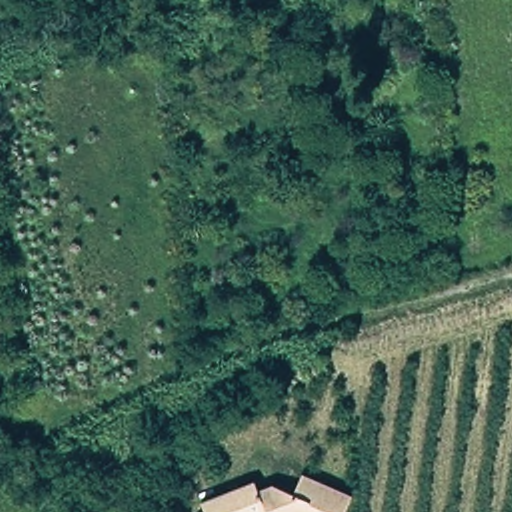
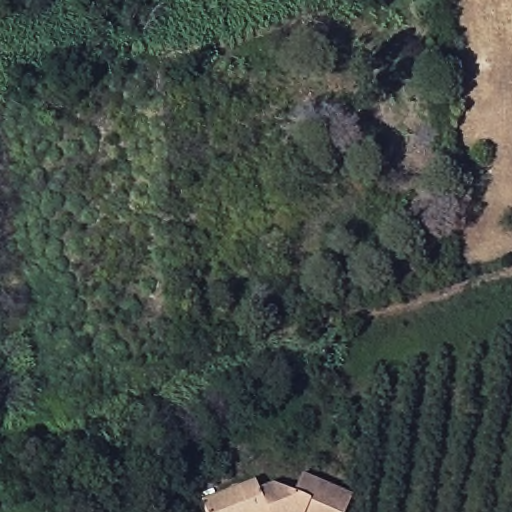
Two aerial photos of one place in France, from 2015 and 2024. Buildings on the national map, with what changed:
unchanged [(254,492),(277,485),(292,492),(303,473),(353,498),(346,512),(203,512),(200,506),(251,485),(254,492)]

